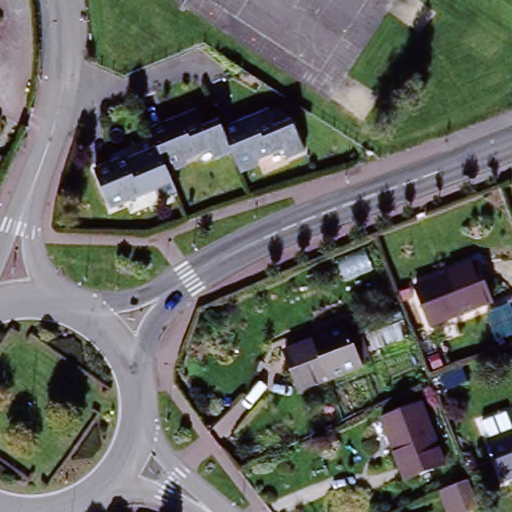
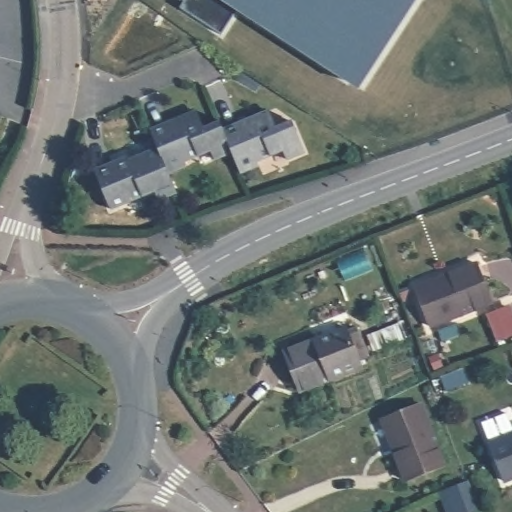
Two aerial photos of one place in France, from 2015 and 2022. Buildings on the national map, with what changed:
new [(357,86),(239,14),(221,32),(179,0),(415,0),(357,86)]
unchanged [(220,128),(230,152),(211,160),(208,153),(164,171),(155,148),(148,131),(167,124),(171,131),(198,119),(203,128),(218,122),(220,128)]
unchanged [(220,128),(239,120),(244,129),(272,119),(276,128),(291,122),(304,155),(286,162),(281,150),(237,171),(230,152),(220,128)]
unchanged [(156,203),(150,192),(108,212),(93,172),(155,148),(164,171),(174,195),(156,203)]
unchanged [(418,288),(476,265),(490,301),(432,325),(418,288)]
unchanged [(366,370),(301,396),(286,355),(350,329),(366,370)]
unchanged [(446,462),(404,480),(381,425),(423,407),(446,462)]
unchanged [(489,445),(481,421),(502,413),(511,436),(512,436),(512,480),(504,483),(489,445)]
unchanged [(437,484),(457,475),(470,503),(451,512),(442,512),(431,487),(437,484)]

